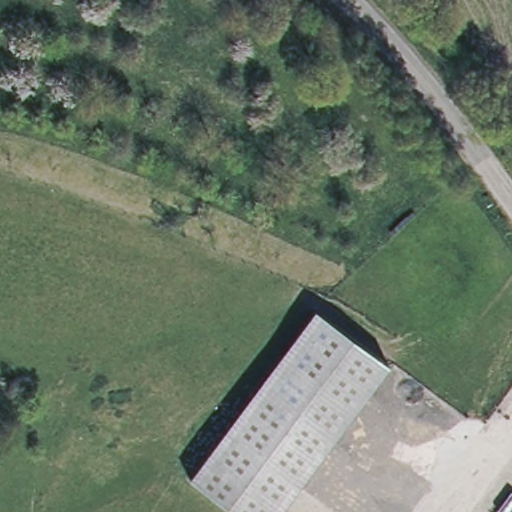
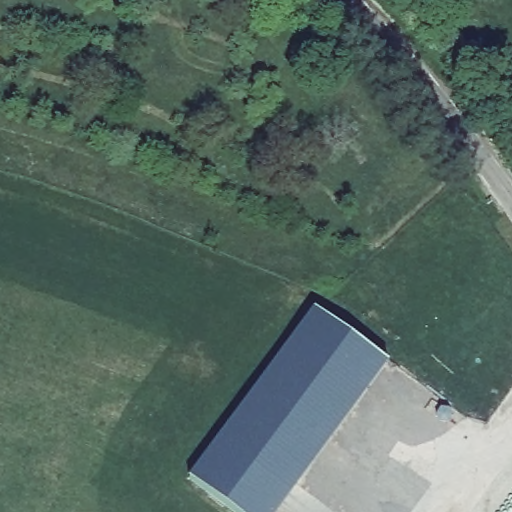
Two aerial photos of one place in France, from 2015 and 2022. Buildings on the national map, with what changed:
unchanged [(281,512),(226,512),(185,481),(313,317),(390,371),(281,512)]

